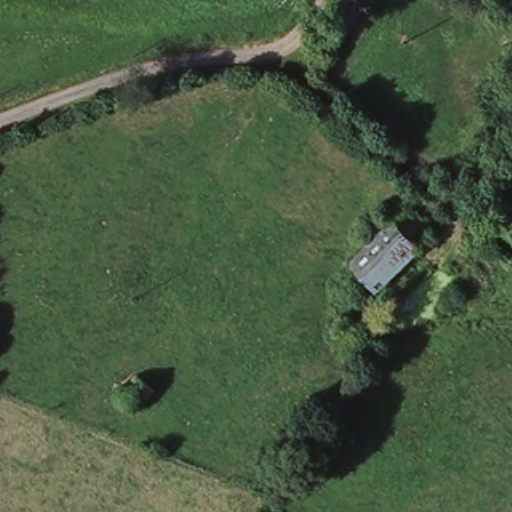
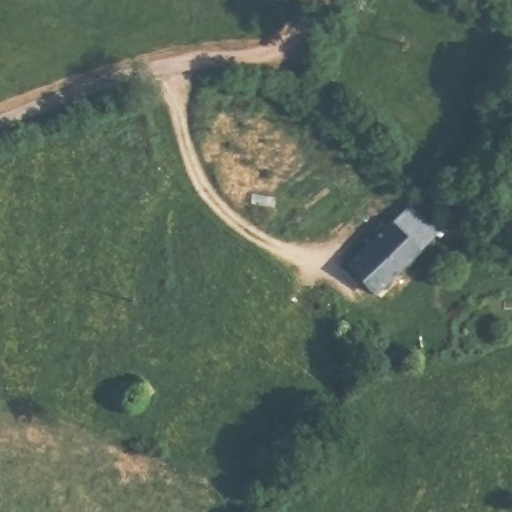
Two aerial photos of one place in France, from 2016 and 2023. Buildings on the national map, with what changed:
unchanged [(429,243),(367,298),(343,269),(403,215),(429,243)]
unchanged [(138,371),(156,385),(139,402),(123,386),(138,371)]

